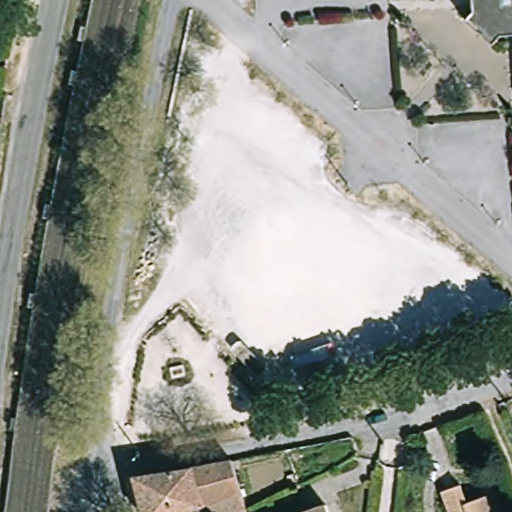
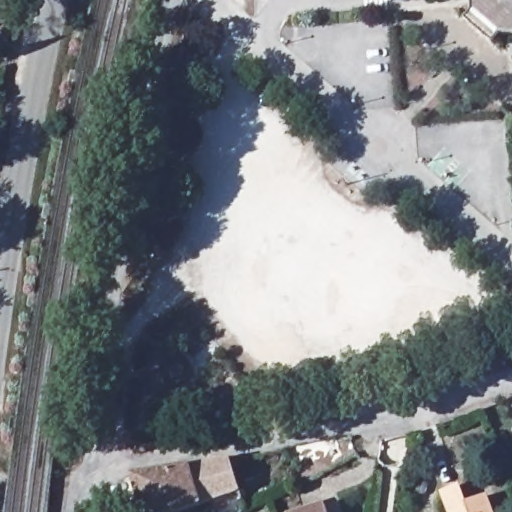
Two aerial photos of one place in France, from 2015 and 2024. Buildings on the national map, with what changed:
unchanged [(493,48),(469,26),(474,20),(472,0),(512,0),(512,36),(502,37),(493,48)]
unchanged [(214,500),(207,503),(196,466),(233,458),(242,491),(250,511),(247,512),(218,512),(214,500)]
unchanged [(207,503),(180,512),(145,512),(136,478),(170,471),(196,466),(207,503)]
unchanged [(442,493),(457,487),(465,506),(483,498),(489,512),(450,512),(442,493)]
unchanged [(328,512),(298,512),(324,502),(328,512)]

